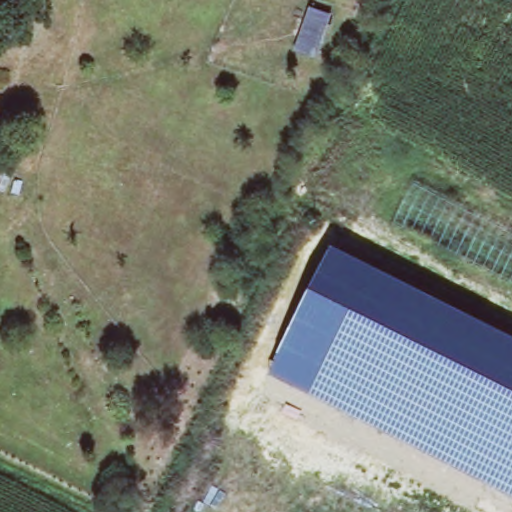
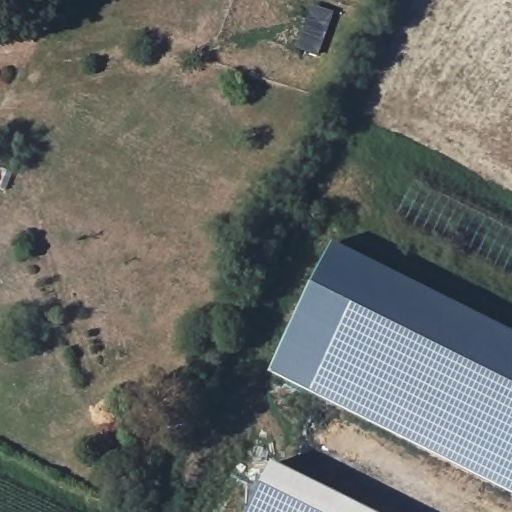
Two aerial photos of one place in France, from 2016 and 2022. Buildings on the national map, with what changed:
unchanged [(512,332),(512,493),(271,372),(335,243),(512,332)]
new [(374,512),(249,512),(273,462),(374,512)]

